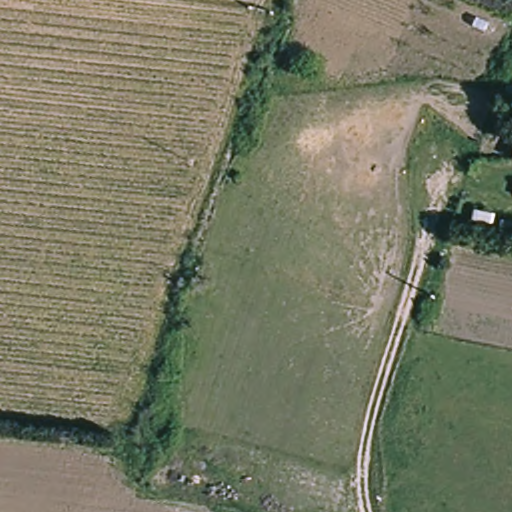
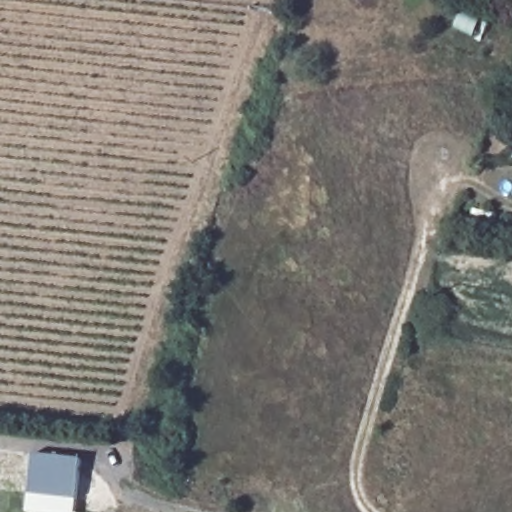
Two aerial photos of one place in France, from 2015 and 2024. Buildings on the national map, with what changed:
new [(33,457),(82,462),(77,502),(29,497),(33,457)]

